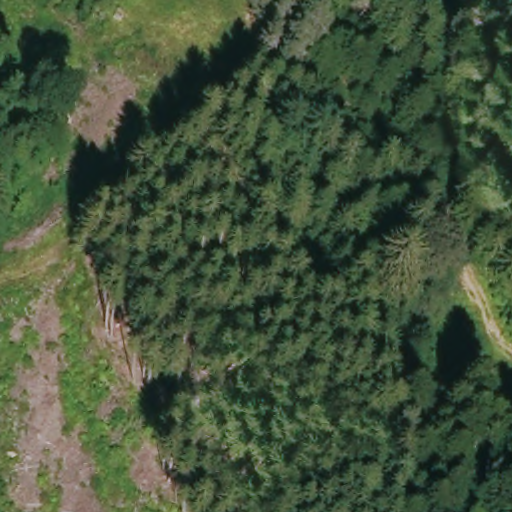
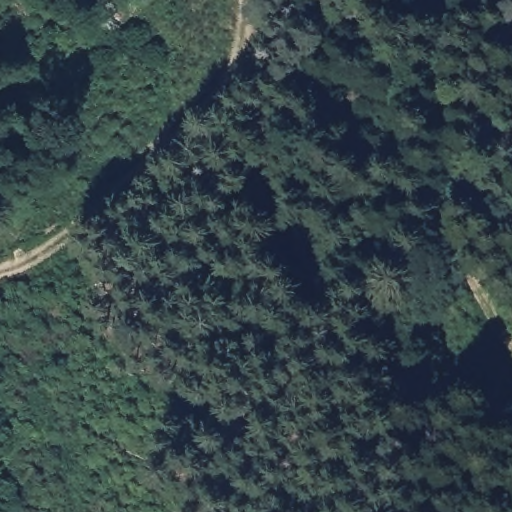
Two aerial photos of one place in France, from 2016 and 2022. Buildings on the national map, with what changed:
unchanged [(131,18),(124,28),(115,20),(121,11),(131,18)]

